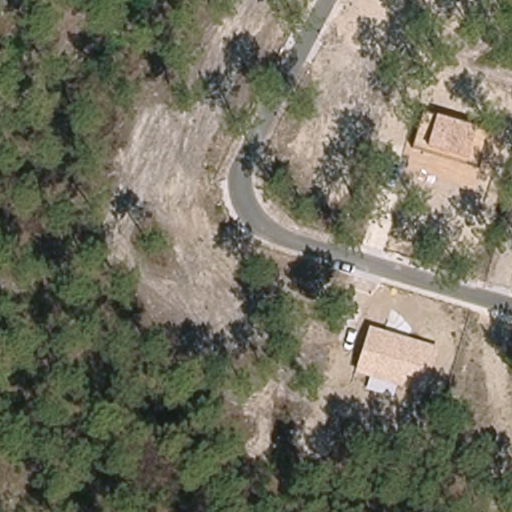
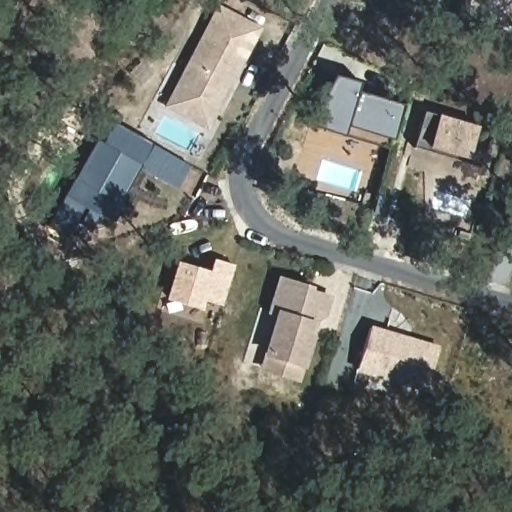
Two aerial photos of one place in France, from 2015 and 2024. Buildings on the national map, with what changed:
new [(209,129),(165,105),(219,3),(262,26),(209,129)]
new [(394,137),(391,147),(345,134),(310,122),(336,74),(361,81),(359,90),(404,102),(394,137)]
unchanged [(481,166),(408,145),(421,110),(492,131),(481,166)]
new [(141,162),(136,159),(120,188),(128,193),(115,218),(102,211),(92,227),(76,218),(69,232),(52,223),(77,175),(90,182),(110,146),(104,142),(116,121),(152,142),(141,162)]
new [(236,263),(224,305),(206,300),(202,309),(167,299),(178,259),(210,268),(214,257),(236,263)]
new [(315,319),(312,329),(316,335),(305,367),(301,381),(262,368),(266,353),(276,315),(268,312),(280,275),(316,285),(315,288),(333,294),(327,315),(315,319)]
unchanged [(424,392),(397,383),(392,397),(366,388),(369,375),(355,371),(368,326),(440,346),(424,392)]

